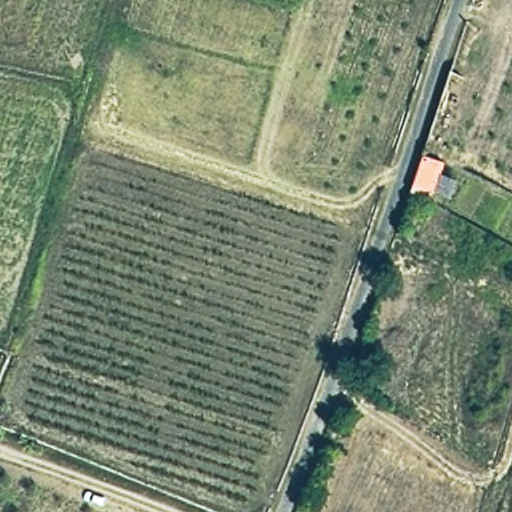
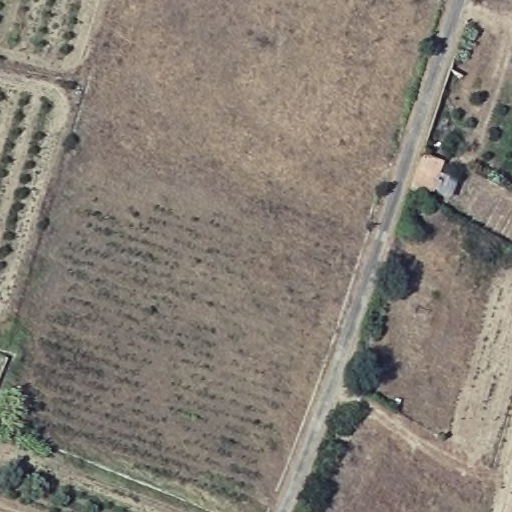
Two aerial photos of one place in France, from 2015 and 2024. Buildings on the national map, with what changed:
[]

